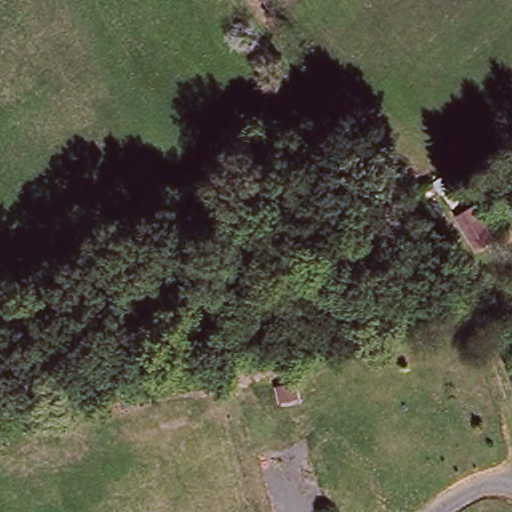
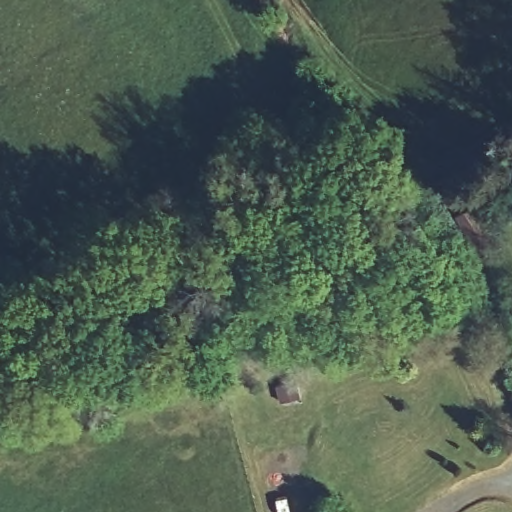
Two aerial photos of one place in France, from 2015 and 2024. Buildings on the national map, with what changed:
unchanged [(477,251),(457,218),(475,209),(495,241),(477,251)]
unchanged [(279,397),(296,392),(302,407),(283,413),(279,397)]

